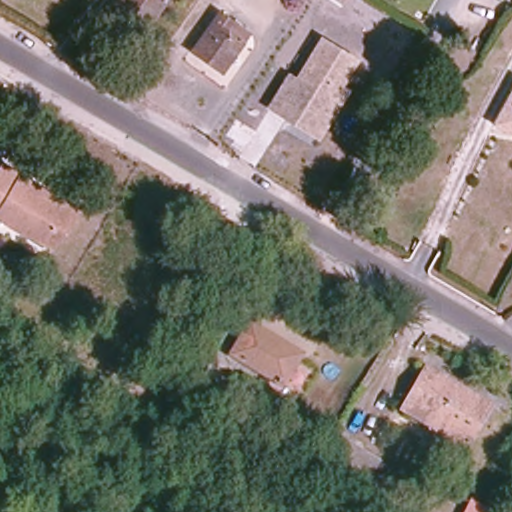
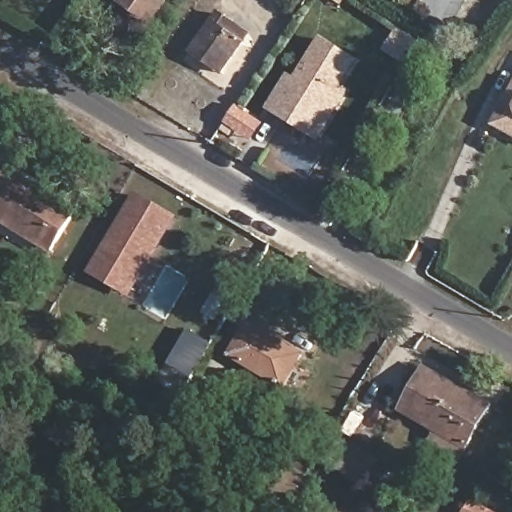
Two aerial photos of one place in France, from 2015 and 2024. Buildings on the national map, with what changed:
new [(147,29),(113,6),(118,0),(167,0),(147,29)]
unchanged [(346,5),(336,0),(349,0),(346,5)]
unchanged [(239,26),(233,35),(245,43),(228,71),(195,51),(219,14),(239,26)]
unchanged [(315,136),(284,117),(268,107),(285,73),(294,78),(318,36),(351,53),(338,80),(344,84),(315,136)]
unchanged [(506,134),(487,122),(505,92),(512,78),(512,138),(506,134)]
new [(235,108),(260,123),(252,138),(226,123),(235,108)]
unchanged [(0,222),(0,169),(73,210),(49,249),(0,222)]
new [(129,298),(86,273),(136,191),(178,216),(129,298)]
unchanged [(284,382),(229,351),(247,321),(300,352),(284,382)]
unchanged [(483,423),(469,449),(404,413),(427,373),(478,401),(490,408),(483,423)]
unchanged [(383,469),(369,496),(325,470),(340,442),(383,469)]

